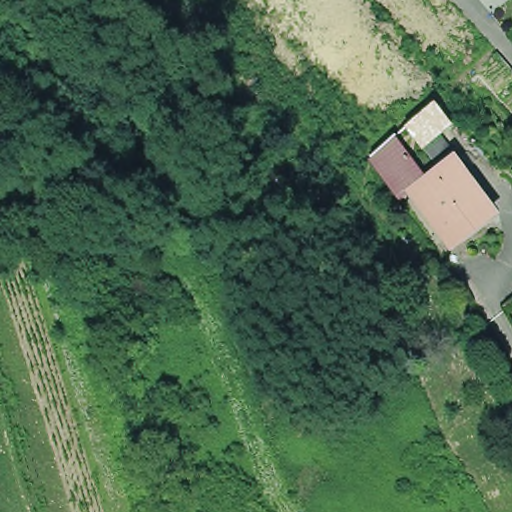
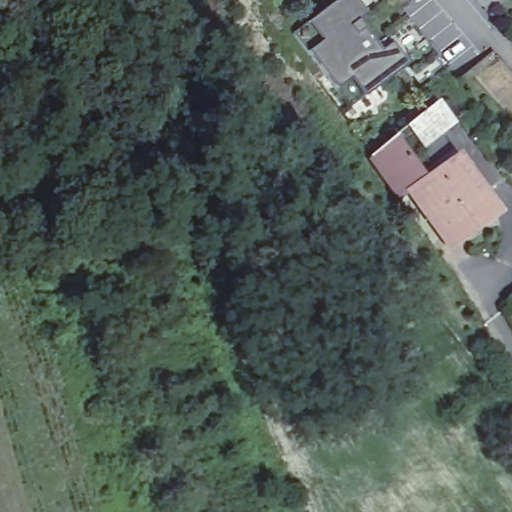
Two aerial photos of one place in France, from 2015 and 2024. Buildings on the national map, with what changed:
new [(398,14),(431,55),(441,66),(419,85),(411,75),(402,66),(365,95),(352,105),(337,87),(309,50),(295,33),(309,23),(336,1),(335,0),(398,0),(405,8),(398,14)]
unchanged [(435,104),(452,124),(440,134),(435,128),(420,141),(407,126),(423,114),(435,104)]
unchanged [(412,200),(405,208),(368,158),(398,134),(428,174),(460,153),(505,212),(452,251),(412,200)]

